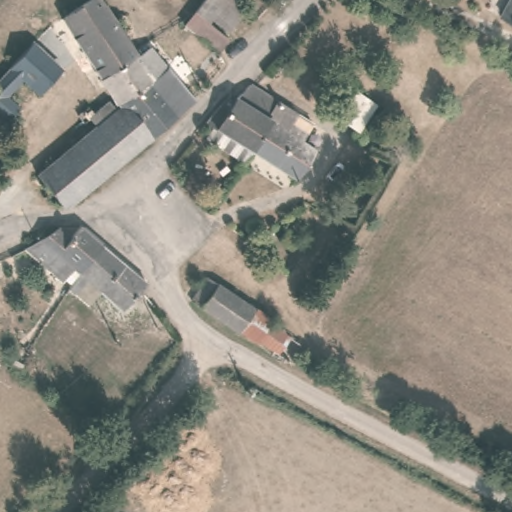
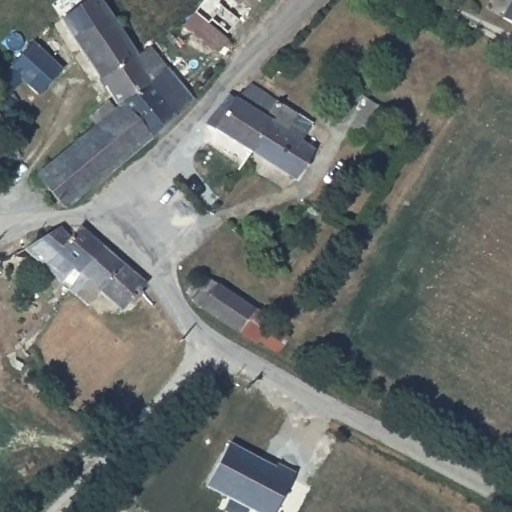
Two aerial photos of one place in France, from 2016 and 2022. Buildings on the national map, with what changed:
unchanged [(52,19),(78,0),(83,0),(121,52),(91,75),(52,19)]
unchanged [(237,7),(227,18),(231,20),(220,35),(201,20),(197,26),(181,15),(199,0),(229,0),(237,7)]
unchanged [(505,13),(511,0),(512,0),(512,17),(505,13)]
unchanged [(0,114),(0,73),(30,40),(57,65),(37,84),(24,74),(7,92),(10,95),(20,104),(6,120),(0,114)]
unchanged [(128,63),(139,79),(110,102),(91,75),(121,52),(125,58),(128,63)]
unchanged [(112,105),(110,102),(139,79),(128,63),(140,54),(182,103),(144,141),(112,105)]
unchanged [(248,82),(255,86),(294,115),(287,125),(307,139),(302,145),(314,155),(298,180),(254,152),(271,127),(235,101),(248,82)]
unchanged [(358,135),(335,121),(350,95),(375,108),(358,135)]
unchanged [(271,127),(254,152),(209,123),(216,107),(227,111),(235,101),(271,127)]
unchanged [(144,141),(105,171),(74,137),(91,122),(112,105),(144,141)]
unchanged [(51,192),(31,172),(49,158),(74,137),(105,171),(80,191),(64,204),(51,192)]
unchanged [(302,215),(298,213),(307,199),(328,212),(316,230),(312,227),(296,250),(283,242),(302,215)]
unchanged [(69,282),(27,250),(44,234),(53,231),(70,239),(81,229),(102,247),(75,274),(69,282)]
unchanged [(102,247),(142,285),(147,292),(123,315),(89,287),(81,297),(72,290),(81,280),(75,274),(102,247)]
unchanged [(302,335),(290,362),(188,295),(207,273),(302,335)]
unchanged [(0,277),(0,274),(1,277),(0,277)]
new [(224,512),(219,510),(227,495),(206,485),(230,442),(275,467),(277,465),(297,474),(278,512),(224,512)]

